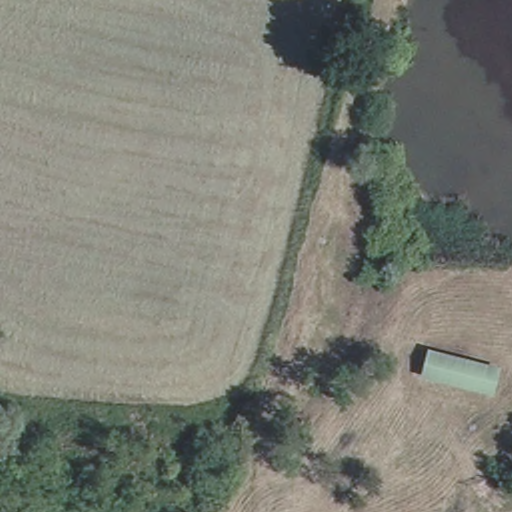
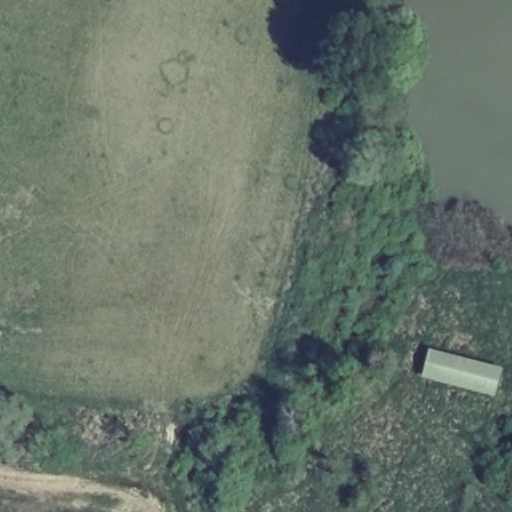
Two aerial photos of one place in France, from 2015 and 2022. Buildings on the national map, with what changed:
unchanged [(502,364),(495,393),(421,373),(428,345),(502,364)]

